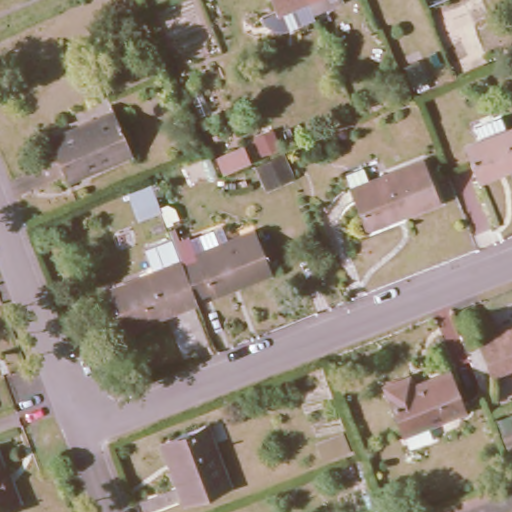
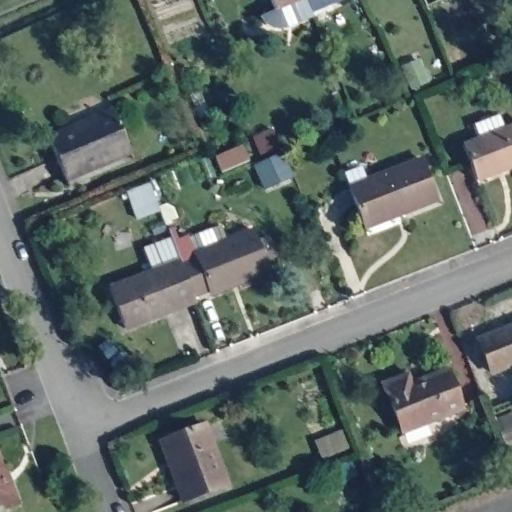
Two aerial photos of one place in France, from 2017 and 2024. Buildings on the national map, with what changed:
unchanged [(299,20),(284,26),(279,27),(274,26),(269,25),(265,22),(261,19),(259,15),(273,9),(269,0),(305,0),(310,12),(298,17),(299,20)]
unchanged [(305,0),(339,0),(310,12),(305,0)]
unchanged [(467,144),(483,138),(479,124),(503,114),(508,128),(512,127),(512,167),(481,179),(467,144)]
unchanged [(130,156),(93,171),(92,170),(63,181),(47,143),(111,115),(130,156)]
unchanged [(248,160),(221,172),(215,157),(243,146),(248,160)]
unchanged [(349,172),(365,166),(371,180),(424,159),(440,199),(369,227),(349,172)]
unchanged [(226,239),(251,229),(256,241),(268,236),(276,256),(264,260),(269,271),(236,284),(233,279),(193,296),(180,263),(179,260),(171,241),(186,235),(188,237),(221,225),(226,239)]
unchanged [(123,328),(108,287),(179,260),(180,263),(193,296),(195,300),(123,328)]
unchanged [(477,340),(512,326),(512,363),(490,371),(477,340)]
unchanged [(109,363),(120,351),(131,357),(118,380),(109,363)]
unchanged [(92,363),(99,380),(92,382),(85,365),(92,363)]
unchanged [(387,383),(412,374),(415,383),(451,369),(467,408),(406,432),(387,383)]
unchanged [(226,483),(183,500),(171,469),(159,439),(167,437),(203,424),(226,483)]
unchanged [(499,431),(512,427),(512,462),(499,431)]
unchanged [(13,481),(23,504),(1,512),(0,512),(0,454),(11,482),(13,481)]

